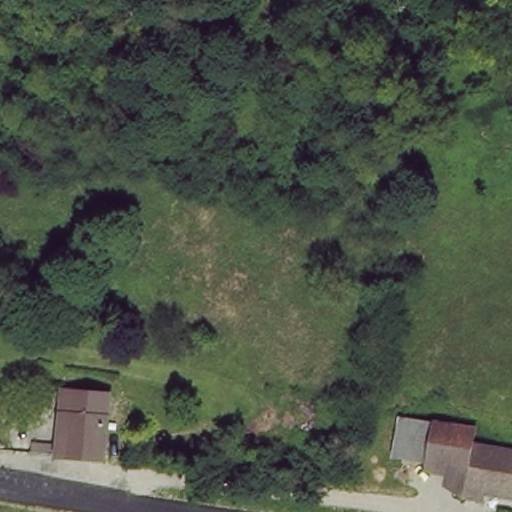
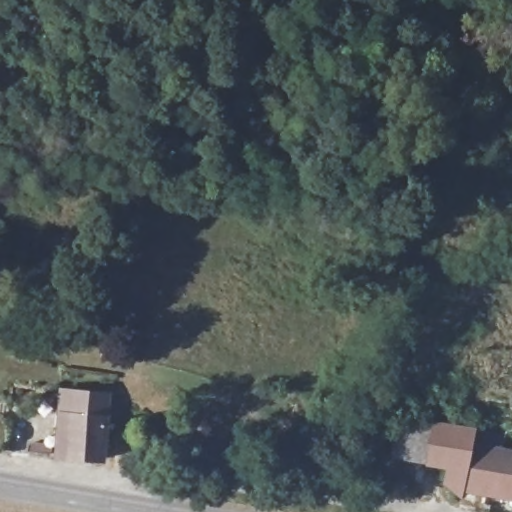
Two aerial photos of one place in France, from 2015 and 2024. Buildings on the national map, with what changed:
unchanged [(35,442),(70,444),(72,410),(64,409),(65,388),(113,392),(110,427),(107,458),(98,457),(68,456),(60,455),(33,453),(35,442)]
unchanged [(427,462),(399,458),(406,418),(434,423),(427,462)]
unchanged [(463,490),(462,497),(447,487),(450,466),(427,462),(434,423),(473,430),(471,442),(512,450),(512,498),(463,490)]

